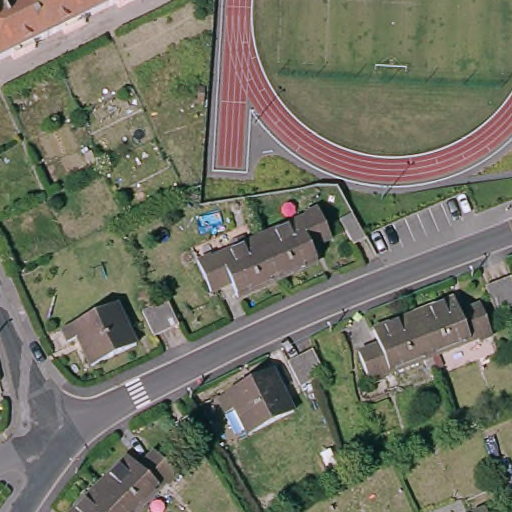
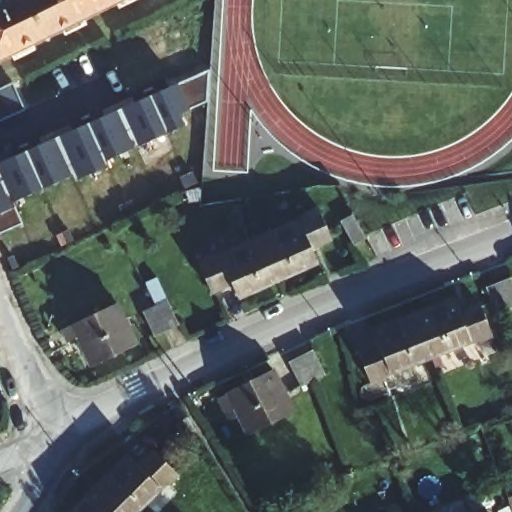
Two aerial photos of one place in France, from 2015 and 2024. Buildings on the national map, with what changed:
unchanged [(0,9),(5,7),(3,2),(6,0),(124,0),(0,62),(0,9)]
new [(190,110),(180,115),(186,125),(105,162),(109,167),(77,181),(74,175),(14,202),(22,222),(0,232),(0,163),(177,84),(209,70),(207,102),(190,110)]
new [(0,120),(0,90),(12,84),(24,110),(0,120)]
demolished [(484,192),(501,186),(510,209),(493,217),(484,192)]
unchanged [(299,212),(297,210),(313,202),(327,232),(308,242),(315,257),(275,275),(256,232),(299,212)]
unchanged [(371,239),(357,244),(347,219),(361,213),(371,239)]
unchanged [(275,275),(235,293),(228,278),(208,287),(194,256),(210,249),(212,252),(256,232),(275,275)]
unchanged [(512,277),(512,279),(512,308),(510,309),(497,314),(486,287),(500,282),(512,277)]
unchanged [(410,311),(452,295),(457,307),(476,300),(489,332),(475,337),(473,333),(426,351),(410,311)]
unchanged [(145,312),(156,306),(169,300),(180,324),(167,330),(155,336),(145,312)]
unchanged [(117,304),(135,345),(92,365),(79,336),(69,341),(63,328),(117,304)]
unchanged [(382,368),(384,373),(369,378),(357,346),(374,339),(370,326),(410,311),(426,351),(382,368)]
unchanged [(302,387),(292,362),(305,357),(317,352),(327,377),(315,382),(302,387)]
unchanged [(273,371),(292,411),(247,432),(235,407),(225,412),(217,397),(273,371)]
unchanged [(200,440),(189,447),(174,423),(187,416),(200,440)]
unchanged [(132,446),(144,457),(157,443),(180,467),(170,477),(168,475),(135,507),(103,476),(132,446)]
unchanged [(130,512),(75,512),(71,507),(103,476),(135,507),(130,512)]
unchanged [(476,512),(466,512),(475,508),(476,512)]

